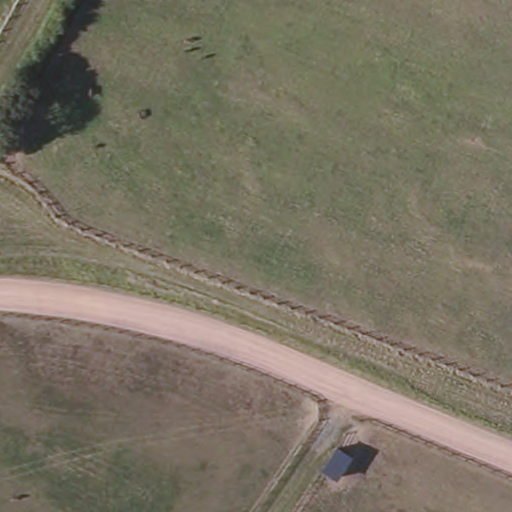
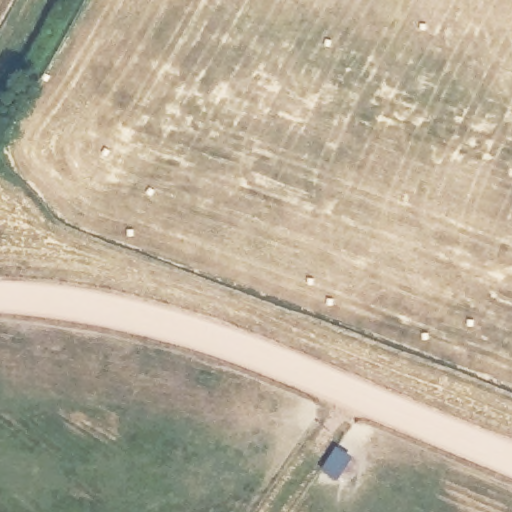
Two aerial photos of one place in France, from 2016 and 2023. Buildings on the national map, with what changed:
unchanged [(337,446),(356,457),(338,483),(322,470),(337,446)]

